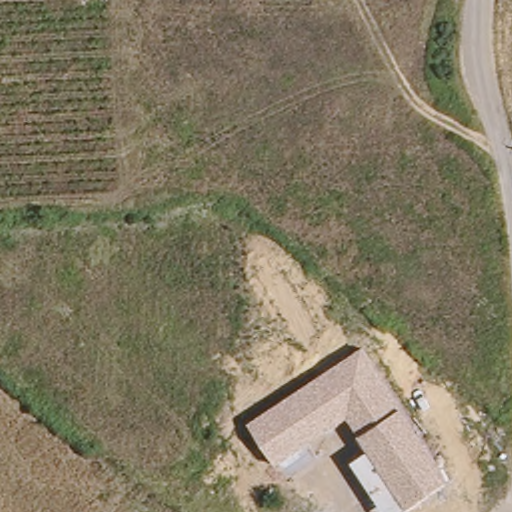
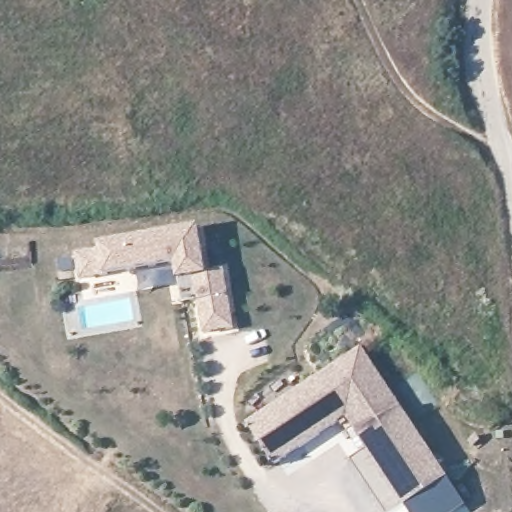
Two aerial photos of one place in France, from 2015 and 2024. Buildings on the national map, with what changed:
new [(208,272),(225,267),(236,327),(204,332),(199,300),(184,302),(183,280),(179,280),(176,262),(104,273),(80,278),(76,253),(101,248),(99,243),(200,225),(208,272)]
unchanged [(451,477),(399,512),(385,512),(351,461),(370,450),(345,417),(275,464),(247,422),(363,345),(451,477)]
new [(448,478),(466,506),(457,512),(409,512),(406,507),(448,478)]

